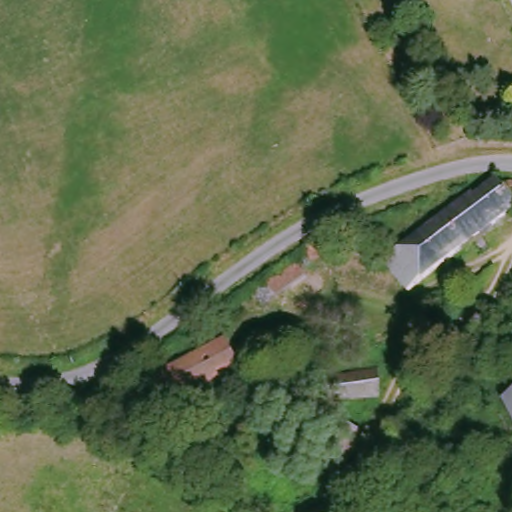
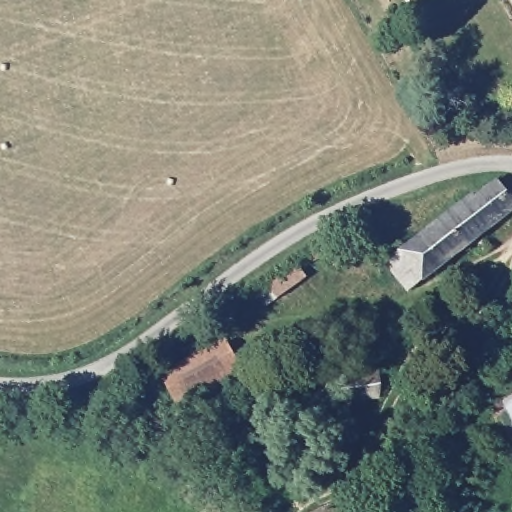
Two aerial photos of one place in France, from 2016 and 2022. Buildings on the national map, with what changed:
unchanged [(512,196),(512,197),(512,208),(480,234),(492,248),(485,253),(474,238),(410,289),(387,261),(472,193),(476,197),(495,180),(512,182),(512,196)]
unchanged [(240,366),(179,400),(165,375),(227,340),(240,366)]
unchanged [(380,393),(334,400),(332,384),(377,371),(380,393)]
unchanged [(512,402),(512,408),(510,403),(512,402)]
unchanged [(362,434),(344,478),(315,467),(333,424),(362,434)]

